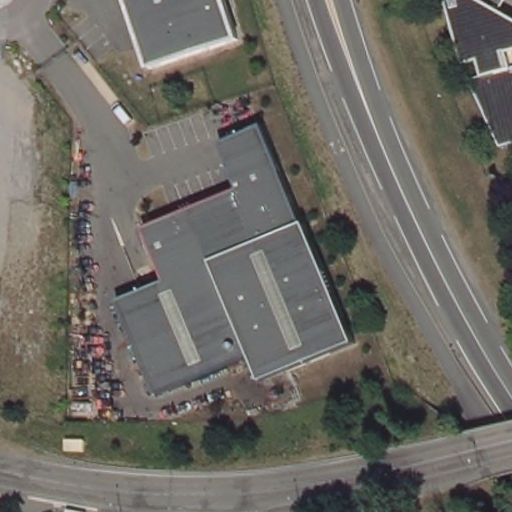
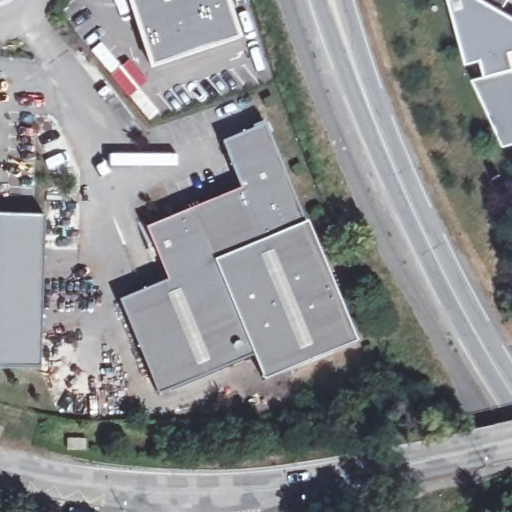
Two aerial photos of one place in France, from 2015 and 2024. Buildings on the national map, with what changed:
unchanged [(124,0),(222,0),(237,43),(148,72),(124,0)]
unchanged [(497,8),(512,16),(512,143),(498,147),(467,80),(480,76),(475,61),(462,64),(444,0),(502,0),(497,8)]
unchanged [(148,229),(243,190),(225,143),(260,128),(266,126),(307,225),(309,224),(358,342),(265,382),(254,356),(251,357),(160,395),(122,302),(170,281),(148,229)]
new [(42,368),(0,368),(0,217),(45,218),(42,368)]

